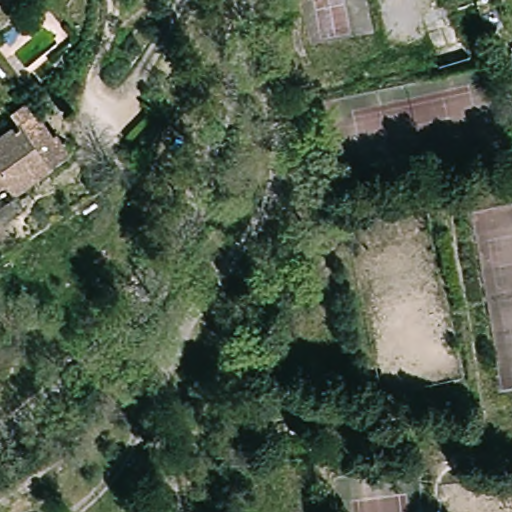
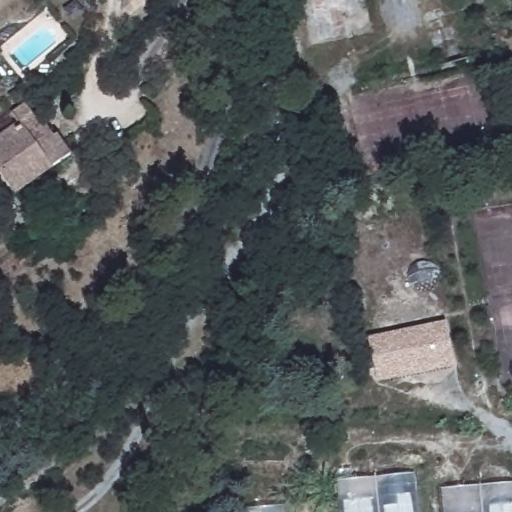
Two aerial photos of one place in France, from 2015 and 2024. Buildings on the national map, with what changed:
unchanged [(5,116),(22,104),(30,115),(51,143),(56,139),(71,160),(13,204),(5,193),(0,197),(0,137),(13,128),(5,116)]
new [(446,320),(457,366),(378,384),(368,338),(446,320)]
new [(415,473),(419,512),(340,512),(336,482),(415,473)]
new [(512,482),(512,512),(444,512),(442,489),(512,482)]

